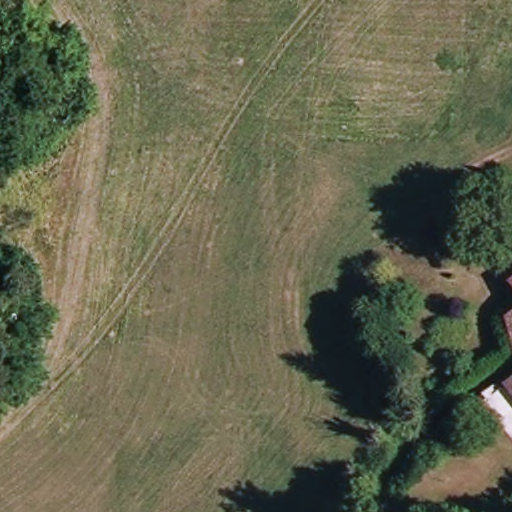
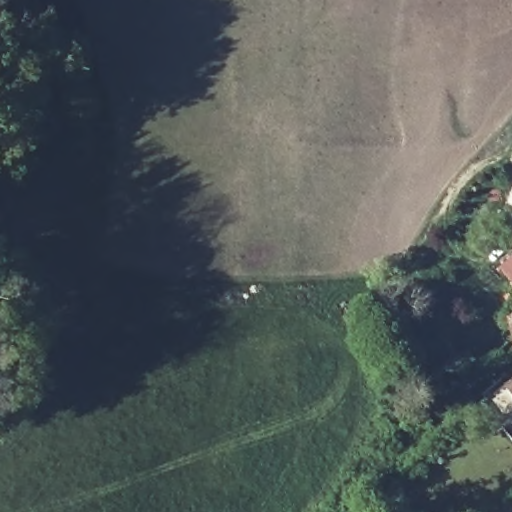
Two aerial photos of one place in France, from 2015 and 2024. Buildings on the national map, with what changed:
unchanged [(512,274),(512,292),(505,279),(512,274)]
unchanged [(501,316),(512,309),(512,351),(509,353),(501,316)]
unchanged [(512,382),(512,386),(510,384),(512,382)]

